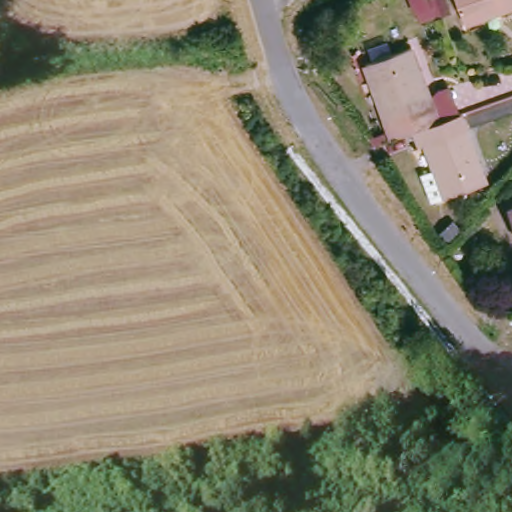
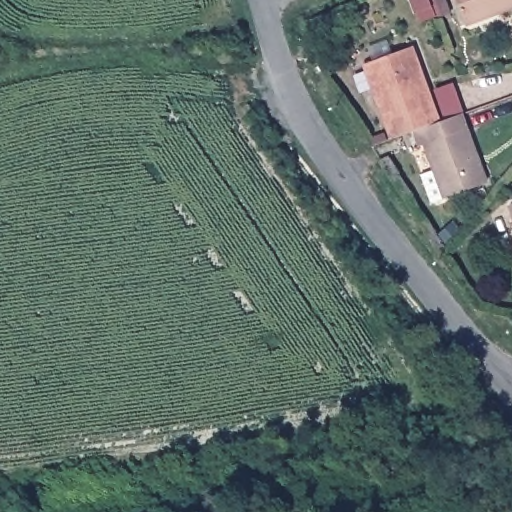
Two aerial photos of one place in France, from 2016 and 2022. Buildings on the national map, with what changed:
unchanged [(458,0),(512,0),(512,5),(466,21),(458,0)]
unchanged [(411,134),(392,141),(363,64),(407,47),(437,125),(411,134)]
unchanged [(437,125),(459,117),(485,189),(445,203),(425,149),(418,151),(411,134),(437,125)]
unchanged [(512,211),(512,220),(510,212),(512,211)]

